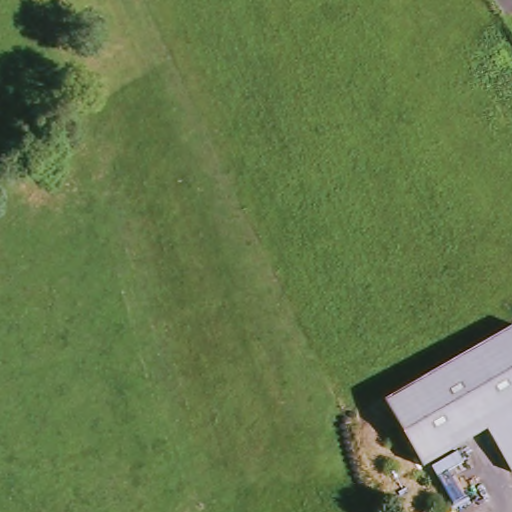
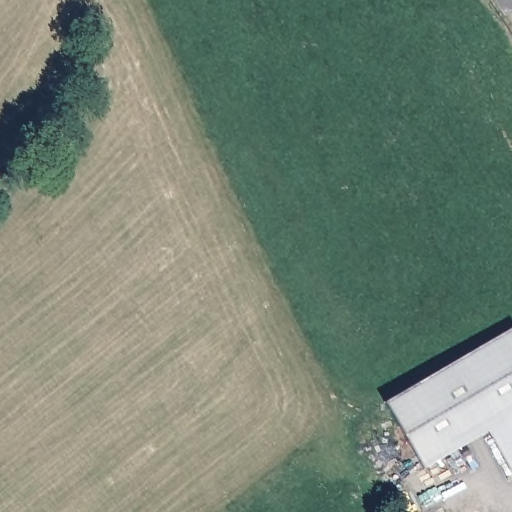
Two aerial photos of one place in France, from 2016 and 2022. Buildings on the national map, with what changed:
unchanged [(384,405),(511,324),(512,326),(512,470),(487,431),(435,462),(422,469),(396,425),(384,405)]

